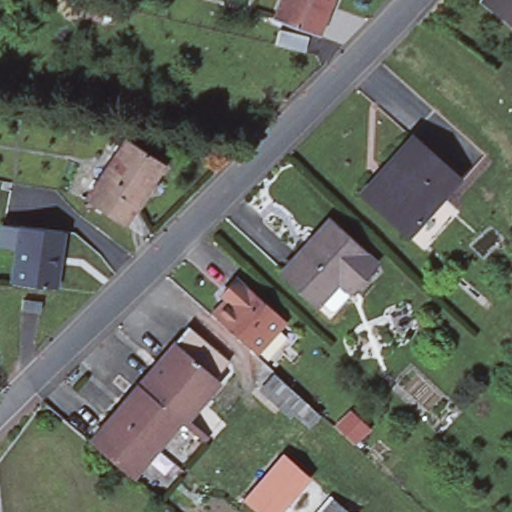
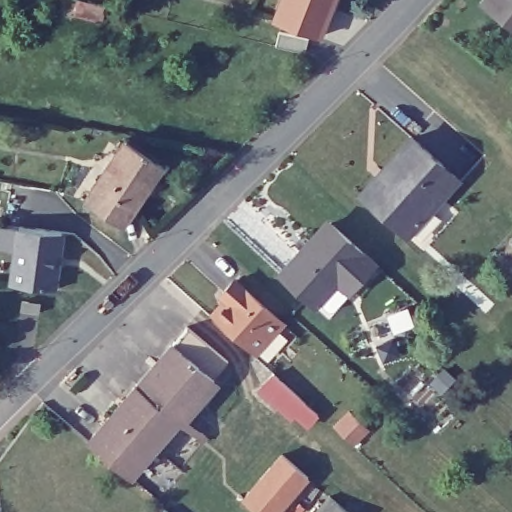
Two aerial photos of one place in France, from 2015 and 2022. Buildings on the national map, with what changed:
unchanged [(269,18),(275,0),(327,0),(321,16),(313,35),(269,18)]
unchanged [(502,20),(479,2),(481,0),(512,0),(512,7),(502,20)]
unchanged [(502,20),(512,7),(512,29),(502,20)]
unchanged [(413,137),(456,176),(447,186),(427,208),(384,168),(404,147),(413,137)]
unchanged [(163,162),(125,222),(86,198),(124,138),(163,162)]
unchanged [(384,168),(427,208),(409,229),(405,232),(362,192),(365,189),(384,168)]
unchanged [(366,256),(341,284),(329,274),(308,299),(273,266),(293,244),(296,246),(324,217),(366,256)]
unchanged [(55,248),(53,264),(57,264),(54,285),(10,280),(14,243),(0,241),(0,221),(17,223),(62,229),(59,249),(55,248)]
unchanged [(281,323),(271,334),(254,352),(215,317),(211,314),(225,298),(221,293),(223,290),(234,279),(281,323)]
unchanged [(39,297),(38,308),(20,306),(21,295),(39,297)]
unchanged [(188,324),(228,359),(213,375),(173,340),(188,324)]
unchanged [(173,340),(213,375),(178,416),(177,417),(138,382),(173,340)]
unchanged [(274,372),(319,413),(309,424),(294,411),(291,415),(260,388),(274,372)]
unchanged [(177,417),(128,473),(88,439),(138,382),(177,417)]
unchanged [(279,452),(328,493),(312,512),(257,512),(240,498),(279,452)]
unchanged [(312,512),(328,493),(351,512),(312,512)]
unchanged [(169,512),(159,512),(163,507),(169,512)]

